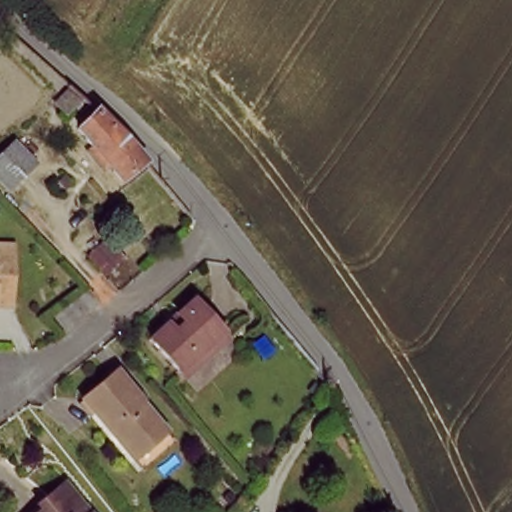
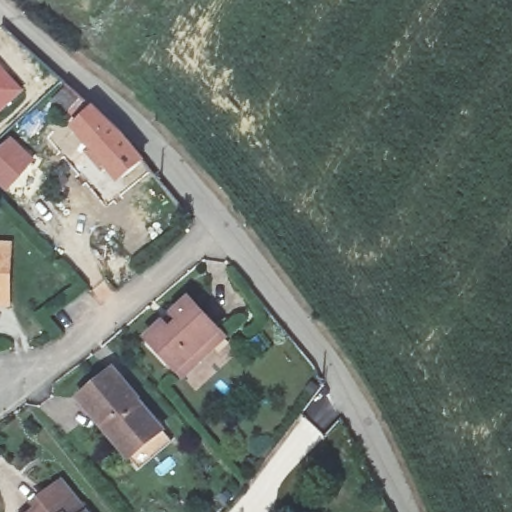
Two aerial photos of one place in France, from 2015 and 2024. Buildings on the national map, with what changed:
new [(0,111),(0,64),(24,90),(0,111)]
unchanged [(146,160),(122,177),(75,128),(96,111),(125,137),(146,160)]
unchanged [(7,187),(0,181),(0,152),(12,140),(32,160),(7,187)]
unchanged [(10,307),(0,307),(0,243),(12,244),(10,307)]
unchanged [(146,340),(161,326),(170,319),(188,303),(217,336),(224,344),(211,355),(197,367),(181,381),(174,373),(146,340)]
unchanged [(134,468),(124,456),(73,395),(103,370),(128,402),(132,400),(157,430),(167,443),(134,468)]
unchanged [(84,512),(29,512),(47,500),(67,487),(84,512)]

